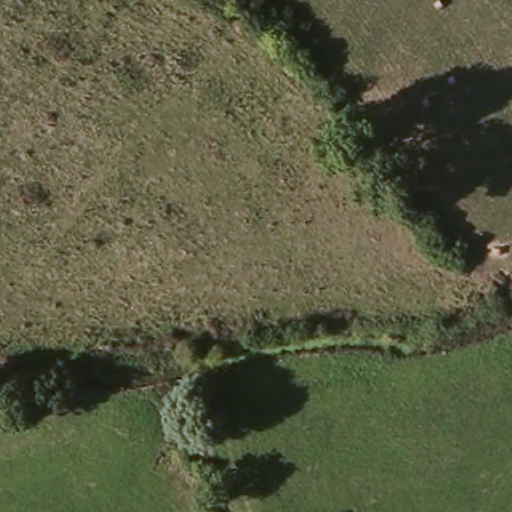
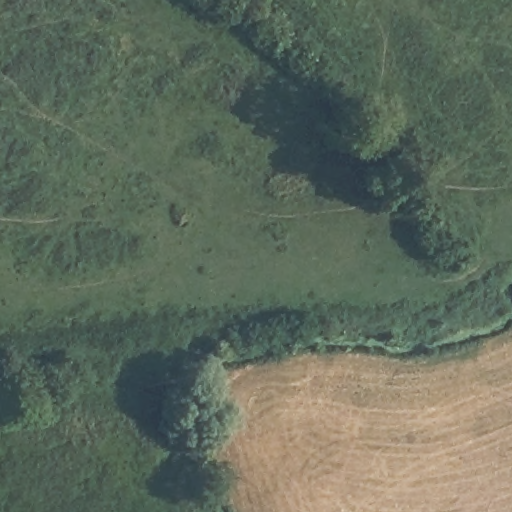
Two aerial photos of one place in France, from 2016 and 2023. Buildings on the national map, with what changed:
[]

